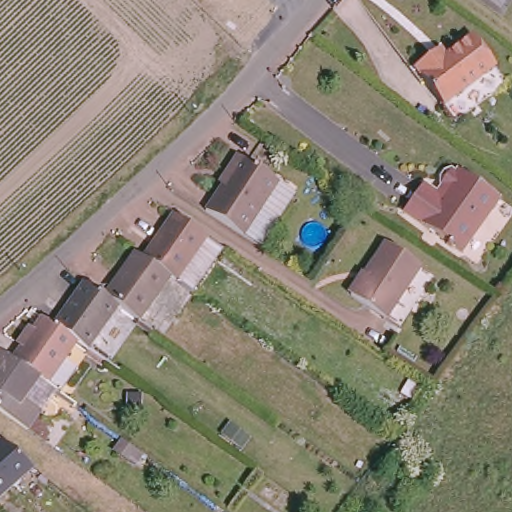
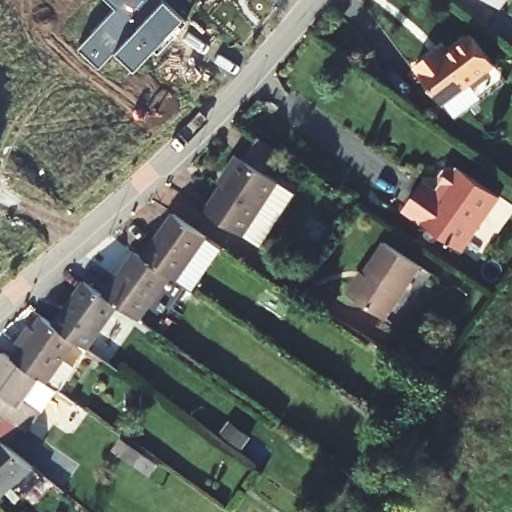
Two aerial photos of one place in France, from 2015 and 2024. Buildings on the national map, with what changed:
new [(187,20),(157,51),(152,44),(132,67),(112,49),(97,64),(77,44),(115,6),(108,0),(164,0),(180,15),(187,20)]
unchanged [(493,0),(512,0),(506,9),(493,0)]
unchanged [(475,35),(497,62),(447,102),(417,65),(433,52),(439,59),(470,34),(475,35)]
unchanged [(234,226),(197,202),(213,175),(216,177),(234,150),(286,184),(267,213),(250,237),(234,226)]
unchanged [(451,185),(445,181),(445,175),(449,169),(455,166),(461,170),(463,165),(505,194),(468,249),(410,209),(428,181),(445,194),(451,185)]
unchanged [(165,273),(138,254),(167,211),(200,235),(170,277),(165,273)]
unchanged [(200,235),(217,246),(187,288),(170,277),(200,235)]
unchanged [(387,244),(422,267),(387,318),(352,295),(387,244)]
unchanged [(130,249),(138,254),(165,273),(135,316),(131,313),(114,301),(108,297),(100,292),(130,249)]
unchanged [(83,346),(72,338),(50,322),(81,278),(100,292),(108,297),(114,301),(83,346)]
unchanged [(42,379),(35,374),(9,355),(37,314),(50,322),(72,338),(42,379)]
unchanged [(35,408),(23,426),(0,410),(0,350),(9,355),(35,374),(19,397),(35,408)]
new [(35,470),(0,500),(0,444),(2,442),(35,470)]

